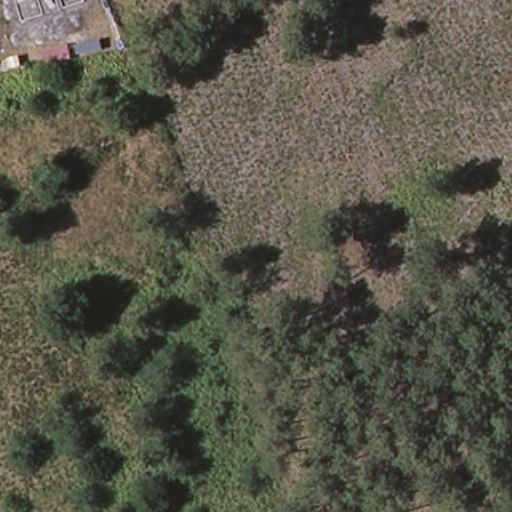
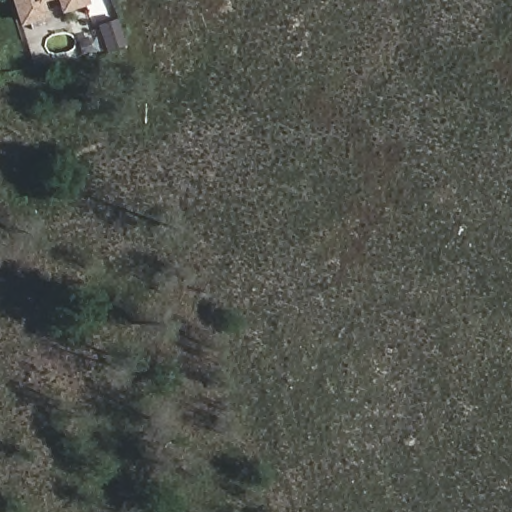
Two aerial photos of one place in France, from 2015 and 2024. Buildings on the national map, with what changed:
unchanged [(22,20),(16,0),(41,0),(44,13),(22,20)]
unchanged [(63,7),(61,0),(85,0),(85,1),(63,7)]

